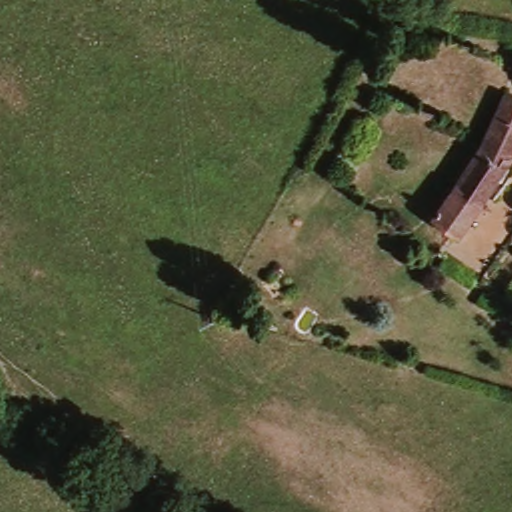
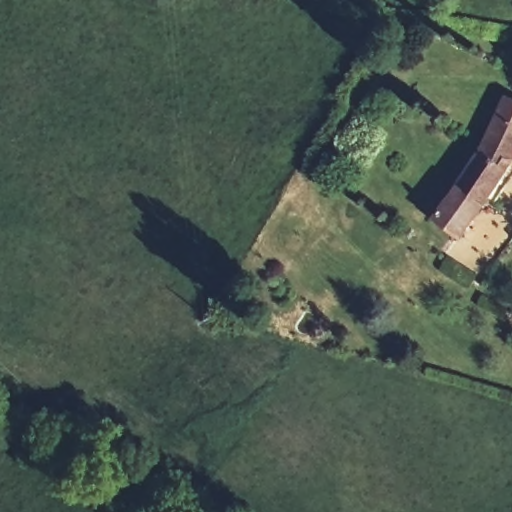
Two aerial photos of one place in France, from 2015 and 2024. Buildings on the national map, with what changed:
unchanged [(512,143),(451,237),(431,225),(507,99),(512,102),(512,143)]

